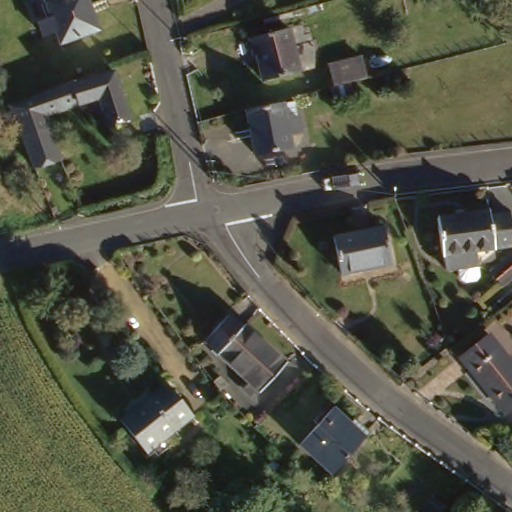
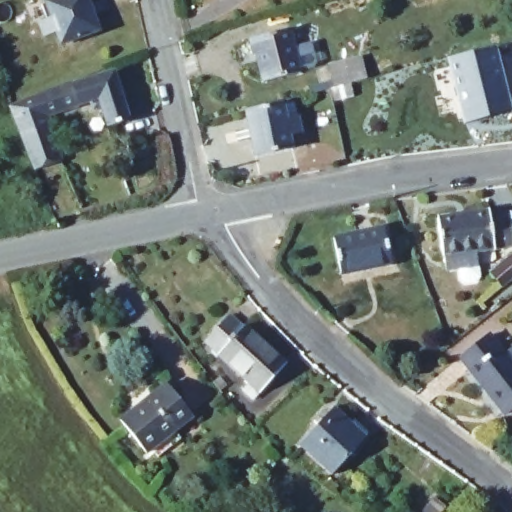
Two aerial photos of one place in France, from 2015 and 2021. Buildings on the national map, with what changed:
unchanged [(73,39),(69,30),(57,34),(52,19),(65,14),(59,0),(100,0),(109,25),(73,39)]
unchanged [(306,66),(270,76),(264,51),(261,51),(256,35),(295,24),(306,66)]
new [(496,45),(512,104),(512,110),(461,124),(444,58),(496,45)]
unchanged [(341,70),(373,61),(379,83),(348,91),(341,70)]
unchanged [(122,66),(138,113),(119,120),(109,92),(55,111),(70,156),(47,164),(20,101),(122,66)]
unchanged [(336,96),(356,91),(359,102),(339,107),(336,96)]
unchanged [(290,129),(294,147),(258,154),(247,111),(284,103),(290,101),(295,118),(297,127),(290,129)]
unchanged [(470,272),(465,268),(464,258),(452,259),(451,244),(449,241),(445,207),(499,201),(499,208),(512,207),(512,238),(482,240),(483,256),(484,267),(481,271),(470,272)]
unchanged [(397,258),(347,269),(339,234),(390,223),(397,258)]
unchanged [(495,266),(512,251),(512,275),(506,280),(495,266)]
unchanged [(293,351),(255,396),(245,387),(252,378),(220,351),(251,315),(293,351)]
unchanged [(512,346),(512,406),(470,354),(499,330),(512,346)]
unchanged [(201,414),(155,452),(127,419),(173,381),(201,414)]
unchanged [(377,436),(342,475),(310,446),(345,407),(377,436)]
unchanged [(464,511),(463,512),(443,512),(455,497),(467,507),(464,511)]

